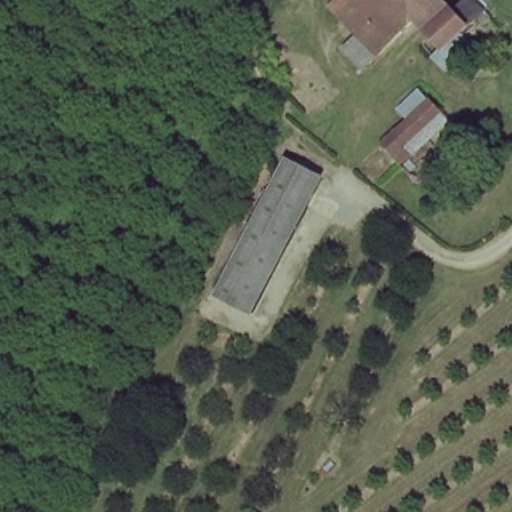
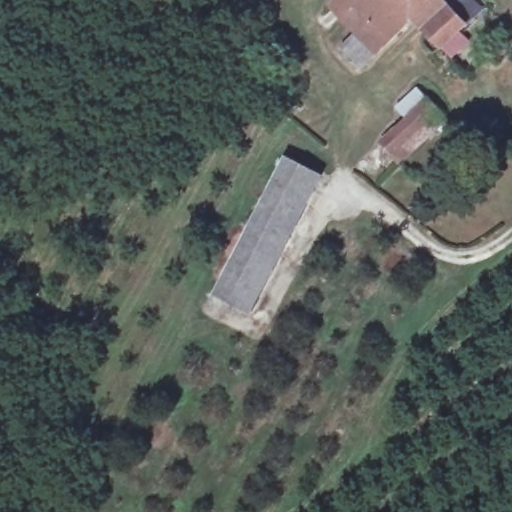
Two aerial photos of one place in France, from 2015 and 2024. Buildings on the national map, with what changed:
unchanged [(252,0),(242,9),(235,0),(252,0)]
unchanged [(379,52),(341,12),(352,0),(396,0),(414,18),(379,52)]
unchanged [(432,0),(414,18),(396,0),(432,0)]
unchanged [(450,49),(433,31),(465,0),(488,0),(494,5),(450,49)]
unchanged [(414,152),(402,163),(385,138),(425,101),(434,111),(404,141),(410,147),(414,152)]
unchanged [(283,159),(322,177),(253,315),(214,296),(283,159)]

